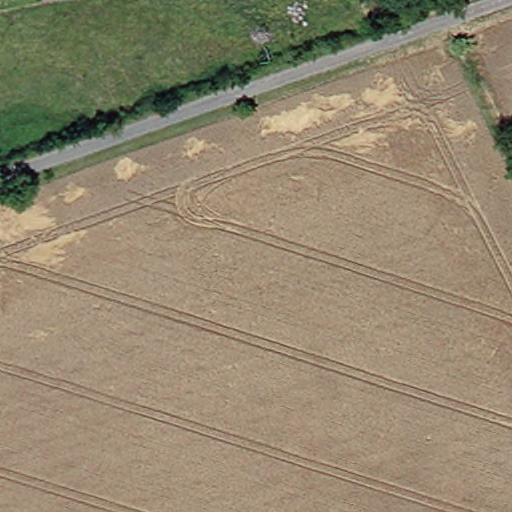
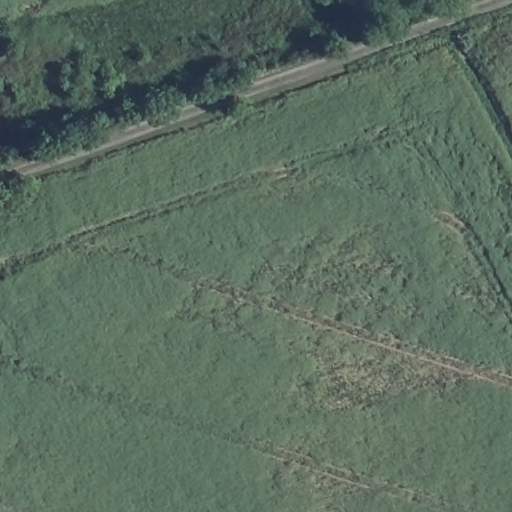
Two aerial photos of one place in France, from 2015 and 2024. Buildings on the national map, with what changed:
unchanged [(315,1),(306,5),(302,0),(315,0),(315,1)]

